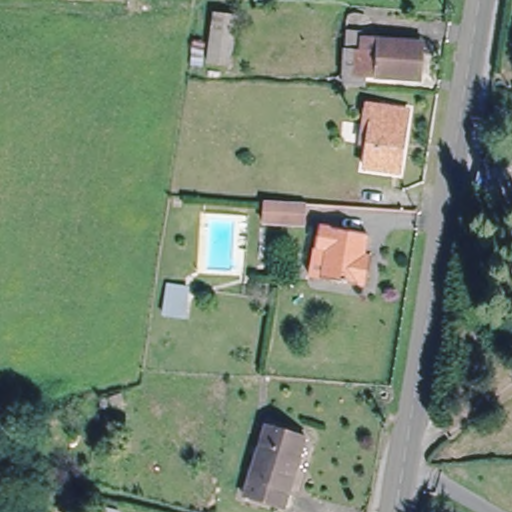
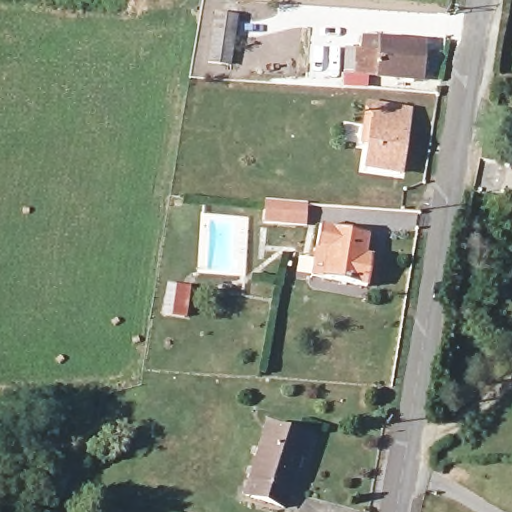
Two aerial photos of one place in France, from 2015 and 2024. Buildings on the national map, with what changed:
unchanged [(234,73),(185,68),(188,31),(210,33),(211,9),(241,15),(234,73)]
unchanged [(366,42),(381,42),(382,27),(419,31),(417,66),(371,63),(370,78),(364,77),(349,75),(351,41),(366,42)]
unchanged [(368,169),(370,119),(381,120),(382,102),(406,106),(404,172),(368,169)]
unchanged [(486,183),(493,150),(512,154),(512,188),(486,183)]
unchanged [(305,224),(268,223),(267,204),(304,205),(305,224)]
unchanged [(366,255),(373,255),(372,284),(317,278),(318,228),(368,231),(366,255)]
unchanged [(198,338),(178,335),(182,303),(201,305),(198,338)]
unchanged [(376,427),(377,410),(390,411),(389,427),(376,427)]
unchanged [(291,502),(249,492),(263,428),(306,437),(291,502)]
unchanged [(119,512),(110,512),(111,510),(119,512)]

